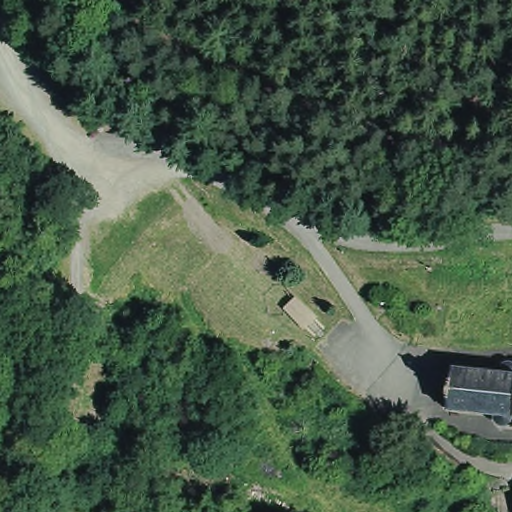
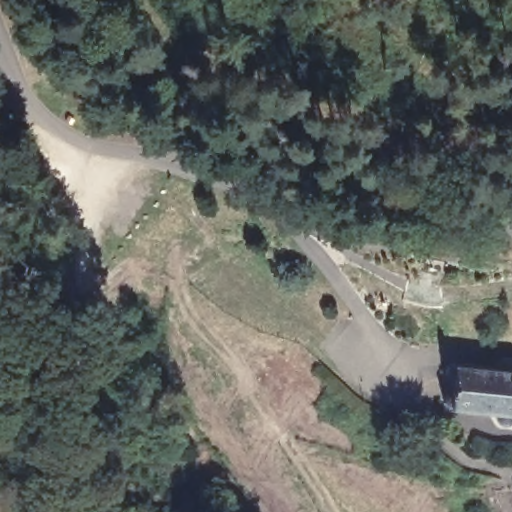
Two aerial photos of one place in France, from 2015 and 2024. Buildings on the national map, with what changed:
unchanged [(505,375),(505,369),(507,366),(512,364),(512,426),(507,427),(502,425),(500,421),(500,415),(487,414),(487,415),(485,415),(485,413),(472,412),(472,414),(469,414),(469,412),(457,410),(456,412),(454,412),(454,410),(450,409),(447,406),(449,399),(451,398),(452,380),(450,378),(451,373),(455,370),(458,370),(459,368),(462,368),(462,371),(474,372),(475,370),(477,370),(477,372),(490,373),(490,371),(492,371),(492,373),(505,375)]

